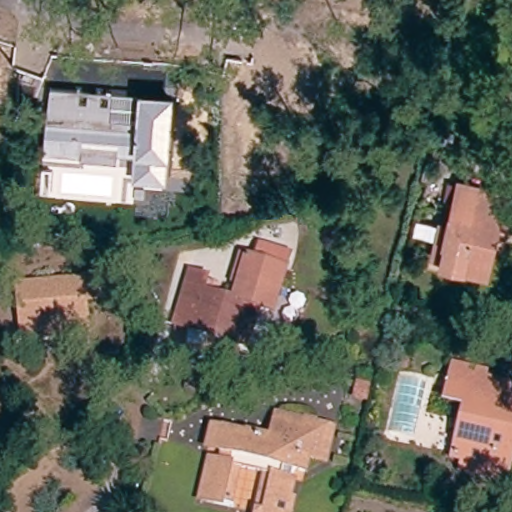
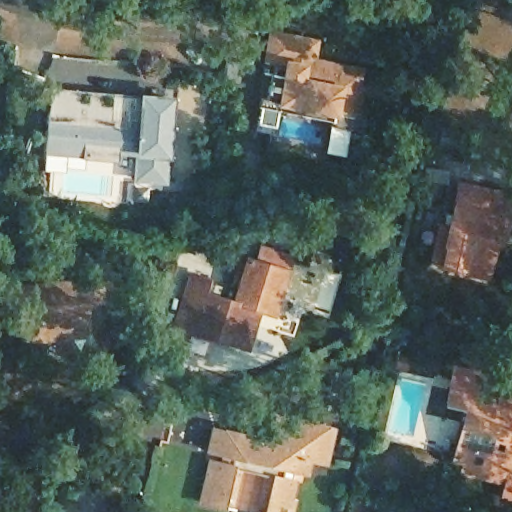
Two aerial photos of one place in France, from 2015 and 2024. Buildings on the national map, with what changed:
new [(269,28),(320,38),(317,58),(362,66),(359,84),(363,85),(357,116),(350,115),(348,128),(330,125),(331,120),(276,110),(273,125),(255,121),(259,105),(261,96),(266,96),(271,72),(280,76),(282,69),(263,63),(269,28)]
unchanged [(139,93),(172,95),(169,158),(166,183),(132,180),(135,152),(119,151),(117,164),(81,160),(81,155),(44,151),(49,88),(139,93)]
unchanged [(459,187),(510,199),(502,235),(494,233),(484,277),(440,267),(452,218),(459,187)]
unchanged [(186,297),(191,281),(206,286),(202,299),(235,310),(249,265),(257,268),(262,254),(291,263),(286,277),(288,278),(274,322),(260,317),(247,355),(216,345),(175,332),(186,297)]
unchanged [(13,339),(9,294),(72,289),(72,282),(92,281),(94,305),(74,306),(76,334),(13,339)]
unchanged [(463,464),(475,411),(446,404),(454,369),(485,376),(483,383),(512,389),(512,432),(511,432),(502,473),(500,483),(461,474),(463,464)]
unchanged [(211,454),(216,433),(242,440),(243,438),(269,444),(275,419),(301,426),(302,423),(308,425),(308,428),(328,433),(320,465),(304,461),(300,475),(290,472),(287,483),(289,483),(284,502),(290,503),(287,512),(257,512),(265,480),(237,472),(227,510),(195,502),(205,463),(214,465),(216,456),(211,454)]

